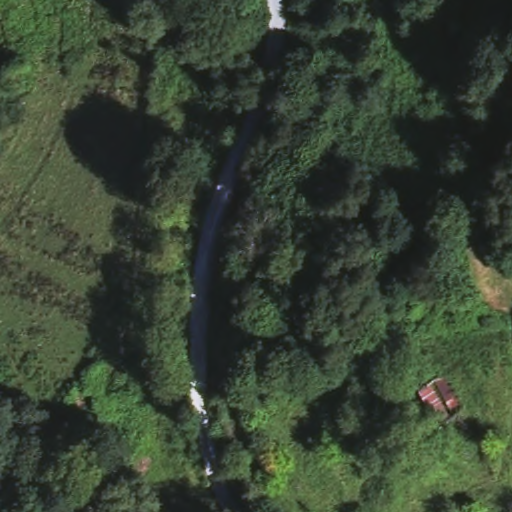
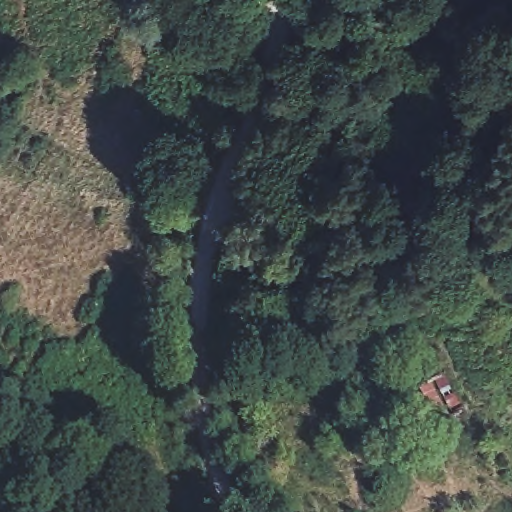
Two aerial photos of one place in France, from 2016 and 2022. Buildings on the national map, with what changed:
unchanged [(458,396),(445,403),(455,421),(436,431),(425,410),(416,393),(447,376),(458,396)]

